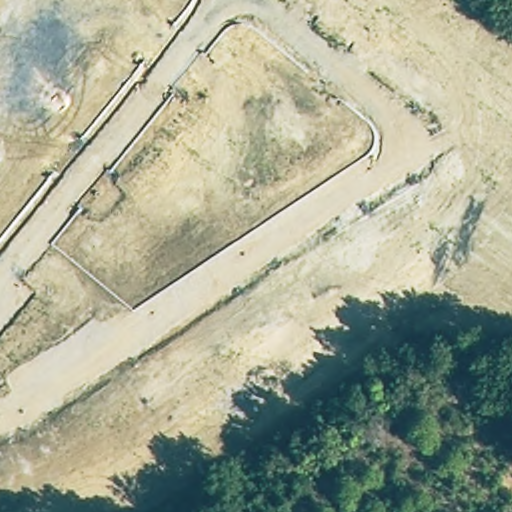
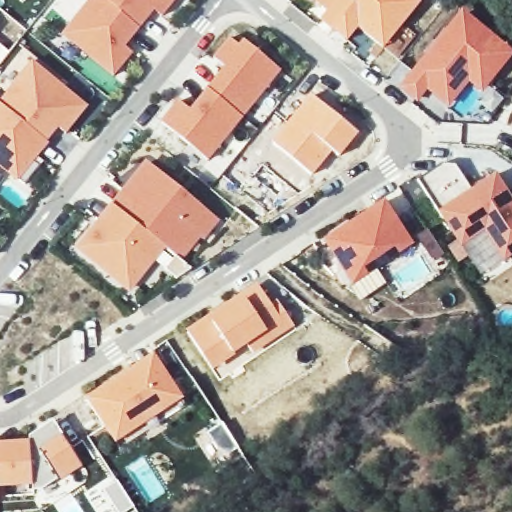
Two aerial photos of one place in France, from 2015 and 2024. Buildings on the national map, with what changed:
new [(133,53),(113,77),(61,33),(89,0),(104,0),(140,30),(125,47),(133,53)]
new [(154,11),(140,30),(104,0),(175,0),(162,17),(154,11)]
new [(322,15),(329,6),(322,0),(356,0),(335,26),(322,15)]
new [(468,83),(448,108),(427,91),(417,102),(398,87),(460,9),(512,53),(512,56),(481,94),(468,83)]
new [(209,161),(160,122),(177,100),(189,109),(223,66),(213,57),(228,37),(238,45),(241,41),(279,71),(209,161)]
new [(9,53),(0,64),(0,45),(9,53)]
new [(30,60),(88,106),(65,134),(57,127),(46,142),(0,104),(0,98),(30,60)]
new [(310,92),(359,132),(339,157),(333,152),(312,176),(270,142),(310,92)]
new [(16,182),(0,169),(0,104),(46,142),(47,142),(16,182)]
new [(218,219),(204,240),(199,240),(181,261),(165,248),(110,203),(144,161),(218,219)]
new [(484,232),(462,247),(438,211),(418,179),(441,164),(452,163),(472,189),(496,175),(512,200),(512,255),(503,261),(484,232)]
new [(414,247),(353,285),(323,239),(384,200),(414,247)]
new [(165,248),(130,293),(74,250),(110,203),(165,248)]
new [(203,355),(188,334),(211,319),(240,300),(259,287),(273,307),(279,303),(294,326),(253,351),(246,342),(232,352),(211,367),(203,355)]
new [(115,435),(88,396),(125,371),(155,351),(161,361),(184,395),(166,407),(118,440),(115,435)]
new [(223,423),(239,448),(231,454),(218,449),(211,438),(206,442),(202,437),(223,423)]
new [(35,489),(34,481),(0,484),(0,445),(42,442),(41,436),(58,425),(83,462),(58,478),(45,488),(35,489)]

